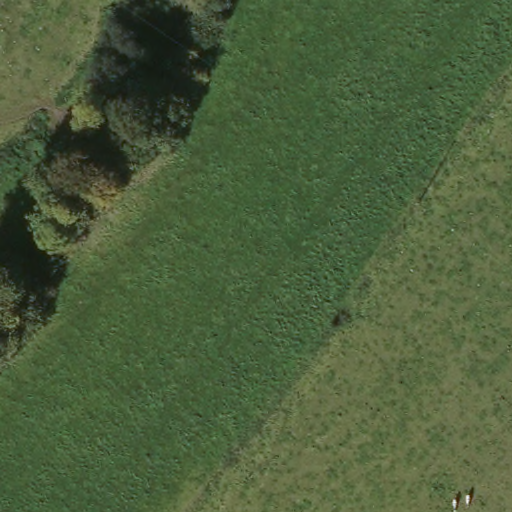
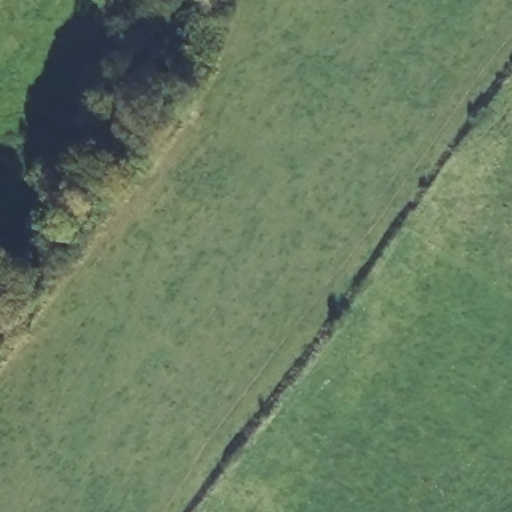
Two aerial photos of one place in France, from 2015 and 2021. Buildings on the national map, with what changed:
unchanged [(125,57),(130,48),(136,51),(131,61),(125,57)]

